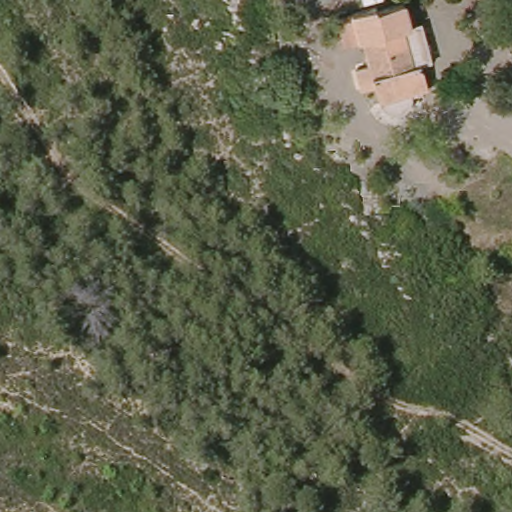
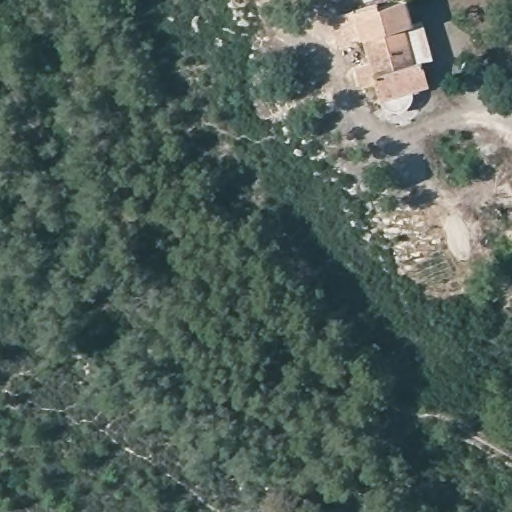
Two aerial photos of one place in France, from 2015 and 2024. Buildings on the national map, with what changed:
unchanged [(408,97),(409,105),(406,107),(406,110),(402,112),(397,114),(392,114),(387,112),(383,109),(380,105),(379,102),(375,84),(361,86),(357,67),(367,65),(364,42),(347,45),(341,14),(357,11),(379,6),(379,10),(405,3),(412,31),(421,29),(428,65),(420,66),(424,93),(408,97)]

